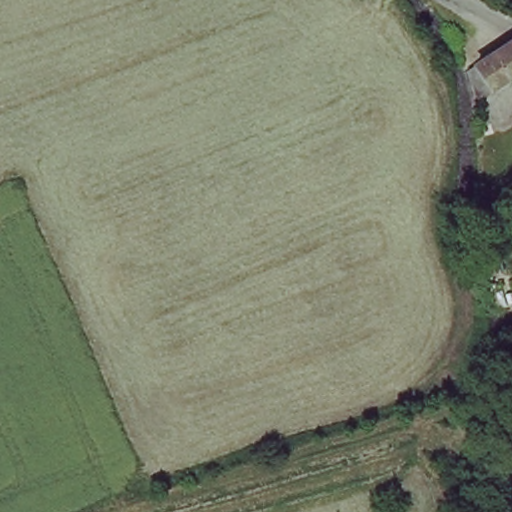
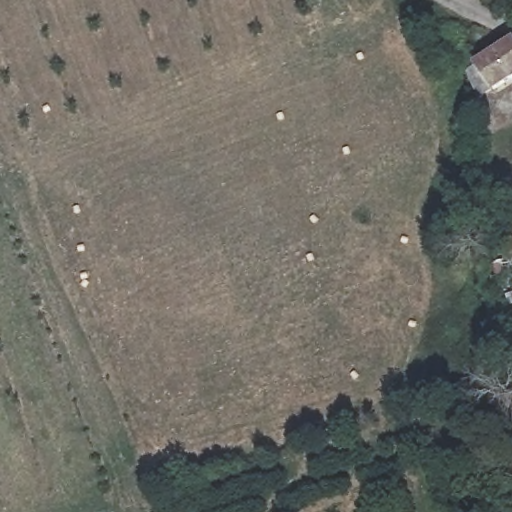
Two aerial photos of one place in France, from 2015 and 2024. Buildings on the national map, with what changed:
unchanged [(512,84),(473,104),(462,74),(512,51),(512,84)]
unchanged [(512,190),(498,195),(490,175),(507,168),(512,179),(512,190)]

